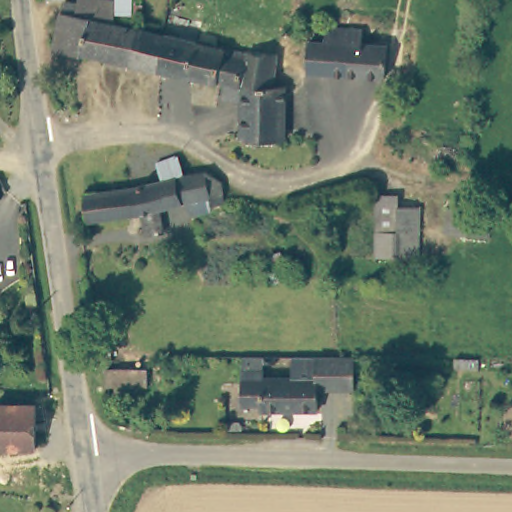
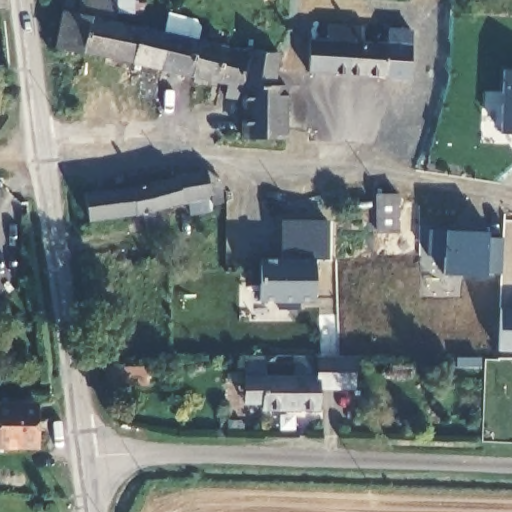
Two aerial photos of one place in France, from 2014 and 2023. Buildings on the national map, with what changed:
unchanged [(111,18),(136,25),(129,62),(54,46),(64,2),(77,4),(78,0),(109,0),(113,1),(111,18)]
unchanged [(113,0),(142,0),(142,27),(136,25),(111,18),(113,1),(113,0)]
unchanged [(129,62),(136,25),(142,27),(163,32),(160,69),(129,62)]
unchanged [(342,72),(307,69),(306,40),(324,41),(325,27),(362,30),(361,41),(387,46),(385,81),(342,72)]
unchanged [(201,42),(194,77),(160,69),(163,32),(201,42)]
unchanged [(226,85),(194,77),(201,42),(230,49),(226,85)]
unchanged [(227,93),(229,85),(226,85),(230,49),(247,52),(247,47),(277,54),(275,84),(285,85),(283,142),(241,140),(242,97),(227,93)]
new [(502,68),(512,69),(512,134),(498,133),(502,68)]
unchanged [(141,213),(87,221),(82,193),(130,184),(147,181),(159,178),(207,169),(220,181),(224,193),(222,202),(208,206),(209,210),(187,214),(184,201),(162,206),(159,207),(162,231),(145,233),(141,213)]
new [(400,232),(376,232),(375,193),(398,193),(400,232)]
demolished [(397,195),(397,205),(418,206),(418,257),(375,256),(376,195),(397,195)]
new [(330,259),(315,258),(315,302),(301,303),(301,309),(277,309),(278,304),(256,304),(256,285),(249,284),(250,257),(281,257),(281,219),(330,221),(330,259)]
new [(485,274),(485,276),(442,275),(443,256),(426,256),(427,229),(461,231),(462,226),(487,227),(486,237),(502,238),(501,274),(485,274)]
unchanged [(109,306),(114,352),(99,353),(94,308),(109,306)]
new [(499,309),(512,310),(512,353),(497,351),(499,309)]
unchanged [(317,387),(317,409),(262,409),(262,402),(244,402),(244,355),(275,355),(275,363),(263,363),(263,377),(293,377),(317,377),(317,387)]
unchanged [(293,377),(293,355),(337,355),(352,355),(352,387),(317,387),(317,377),(293,377)]
unchanged [(147,366),(147,384),(107,385),(107,367),(147,366)]
unchanged [(0,404),(36,404),(36,447),(0,447),(0,404)]

